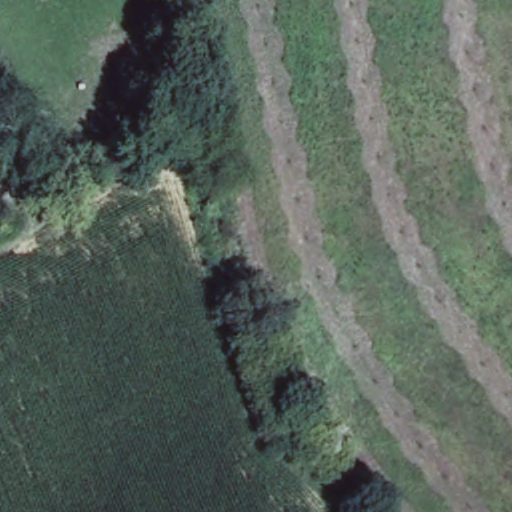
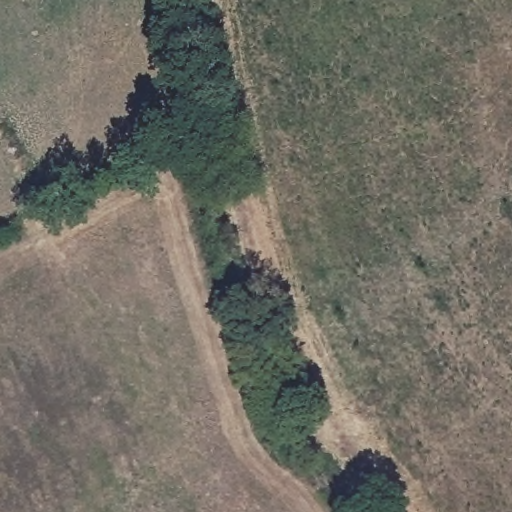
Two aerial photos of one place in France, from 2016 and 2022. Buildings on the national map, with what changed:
[]

